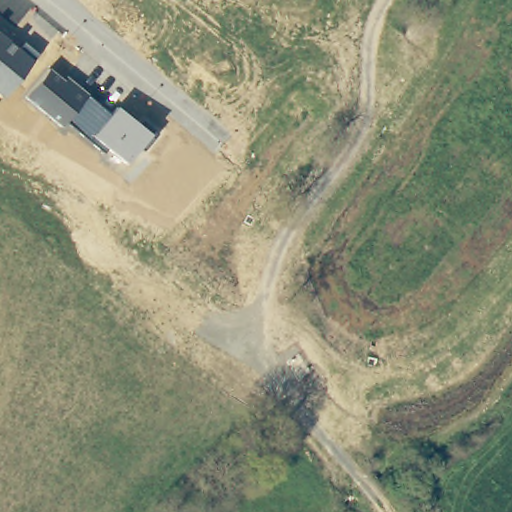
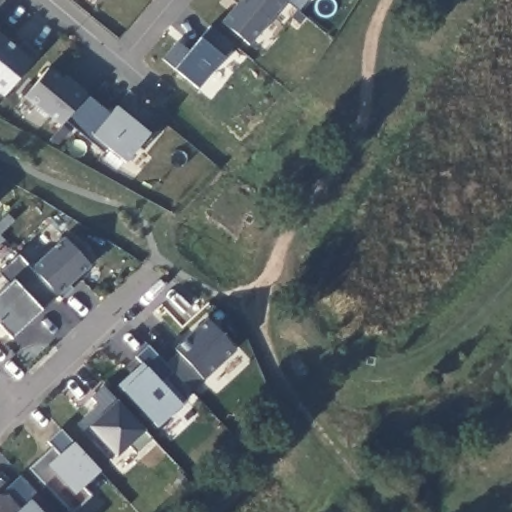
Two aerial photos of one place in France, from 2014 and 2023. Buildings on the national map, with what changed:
new [(221,23),(235,5),(232,2),(233,0),(290,0),(252,47),(221,23)]
new [(163,61),(177,42),(187,54),(210,27),(234,47),(197,89),(163,61)]
unchanged [(16,48),(21,42),(38,54),(32,61),(3,96),(0,93),(0,34),(16,48)]
unchanged [(48,67),(62,81),(66,76),(89,95),(110,115),(116,107),(150,135),(125,163),(106,147),(101,152),(65,122),(60,127),(24,97),(48,67)]
new [(6,285),(0,276),(0,270),(17,255),(31,270),(64,238),(90,267),(69,287),(73,290),(61,300),(59,297),(11,340),(0,328),(0,291),(6,285)]
new [(242,349),(197,390),(173,364),(185,353),(181,349),(214,318),(242,349)]
new [(125,384),(139,371),(143,376),(152,367),(141,356),(155,344),(180,372),(172,378),(192,400),(164,427),(125,384)]
new [(141,433),(150,442),(137,454),(128,448),(116,457),(97,437),(91,441),(76,424),(98,407),(91,399),(105,388),(144,431),(141,433)]
new [(81,487),(90,495),(73,512),(68,512),(27,469),(39,457),(48,467),(59,457),(47,444),(59,431),(97,471),(81,487)]
new [(36,507),(41,512),(0,512),(0,493),(20,476),(42,502),(36,507)]

